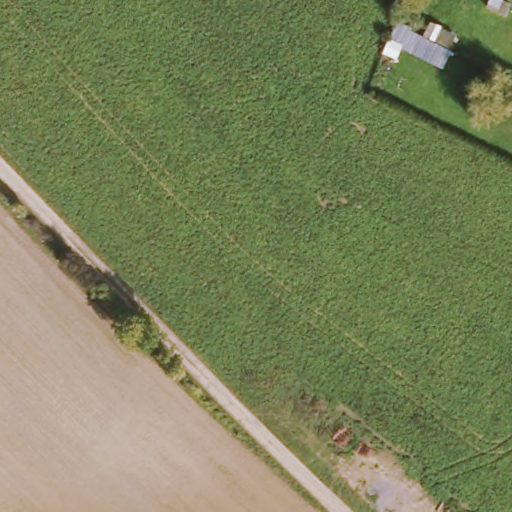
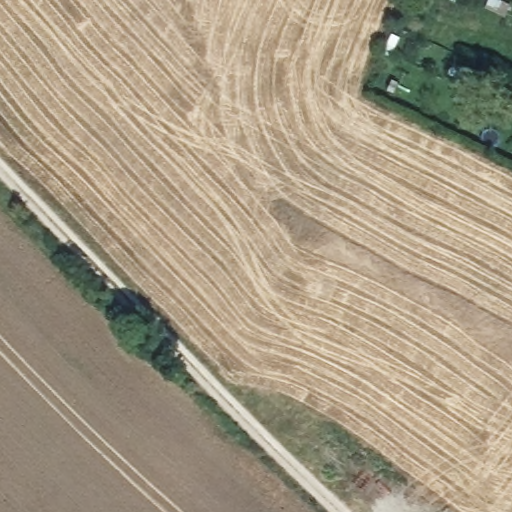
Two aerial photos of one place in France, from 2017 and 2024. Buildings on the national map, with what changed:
unchanged [(512,14),(510,18),(490,10),(495,0),(500,0),(512,5),(512,14)]
unchanged [(393,29),(448,55),(440,71),(396,50),(390,62),(380,58),(386,45),(393,29)]

